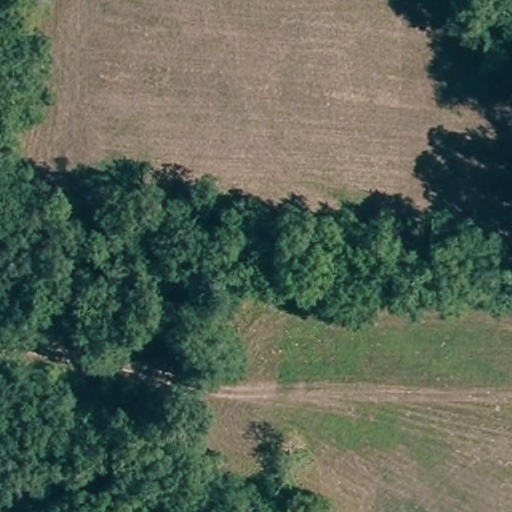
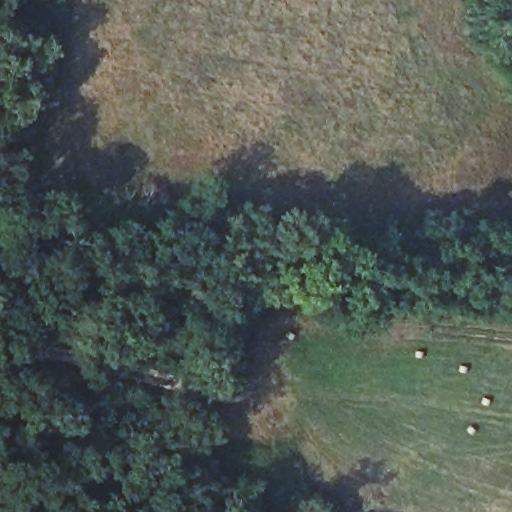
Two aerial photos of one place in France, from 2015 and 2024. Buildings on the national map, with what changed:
[]

